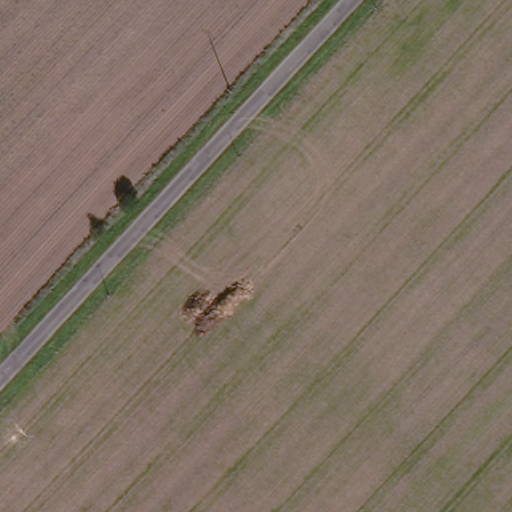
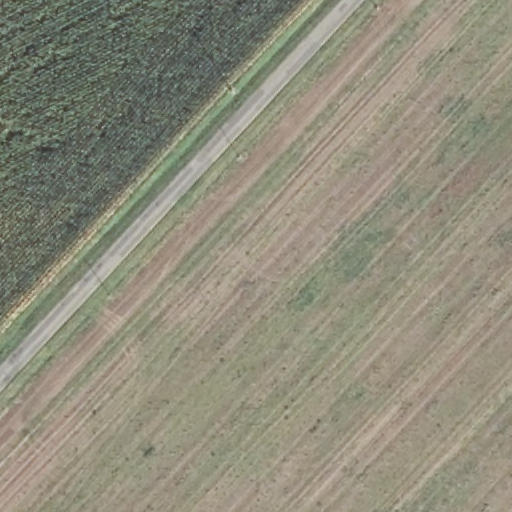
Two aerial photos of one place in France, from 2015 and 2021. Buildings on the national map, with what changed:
[]

